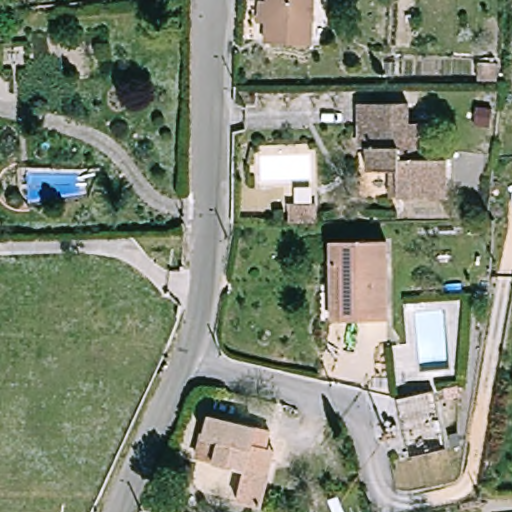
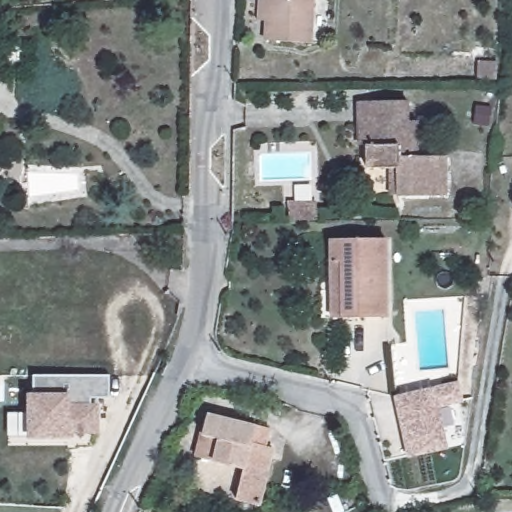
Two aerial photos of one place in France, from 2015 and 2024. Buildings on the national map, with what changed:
unchanged [(265,39),(266,23),(257,22),(259,0),(268,1),(268,0),(314,0),(311,43),(265,39)]
unchanged [(367,146),(359,146),(358,104),(410,103),(410,123),(420,123),(421,157),(448,157),(448,196),(397,197),(397,169),(367,169),(367,146)]
unchanged [(289,204),(317,204),(317,222),(288,222),(289,204)]
unchanged [(387,318),(330,318),(330,290),(330,240),(340,240),(387,240),(387,318)]
new [(29,393),(35,393),(35,377),(108,378),(108,397),(90,397),(89,404),(99,403),(99,434),(71,434),(72,441),(30,440),(29,393)]
unchanged [(444,387),(447,400),(437,403),(445,434),(455,432),(458,445),(408,457),(395,399),(444,387)]
unchanged [(277,432),(273,447),(281,449),(278,458),(265,504),(242,499),(249,472),(218,463),(201,458),(206,437),(211,416),(277,432)]

